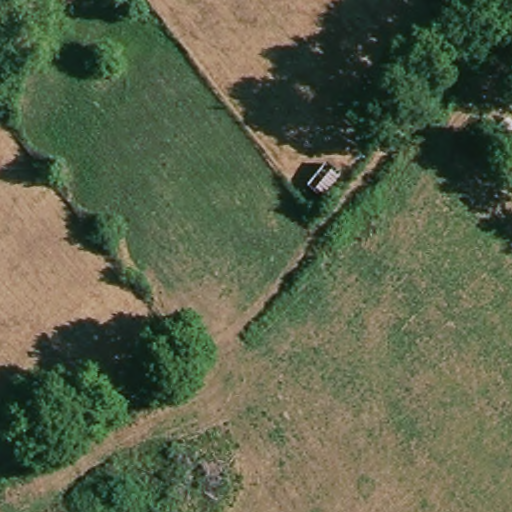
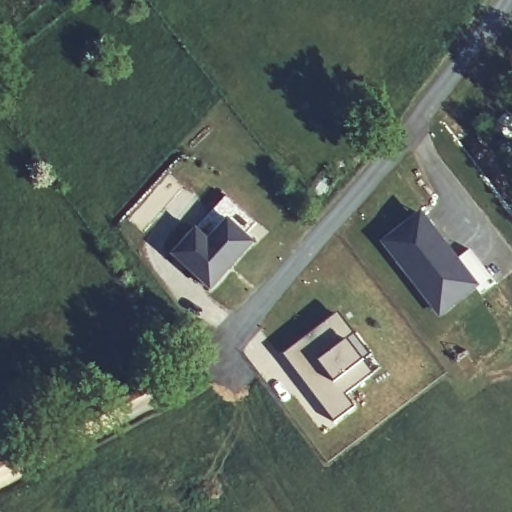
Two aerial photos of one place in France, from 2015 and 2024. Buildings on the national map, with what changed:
new [(246,233),(256,242),(211,291),(171,254),(196,227),(226,196),(256,224),(246,233)]
new [(471,249),(496,283),(482,295),(476,289),(441,317),(381,242),(422,211),(457,259),(471,249)]
new [(372,355),(364,361),(374,373),(344,393),(356,406),(334,422),(284,355),(338,314),(372,355)]

